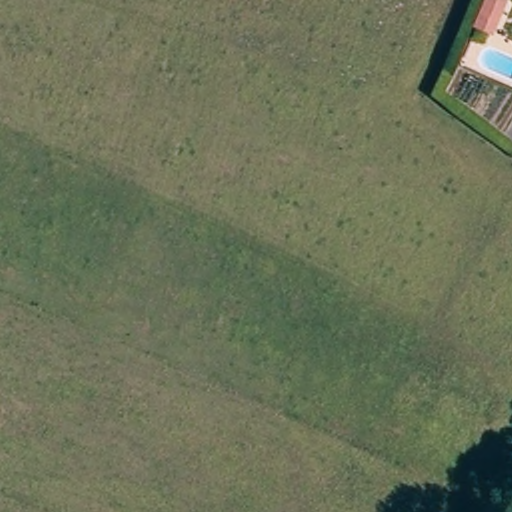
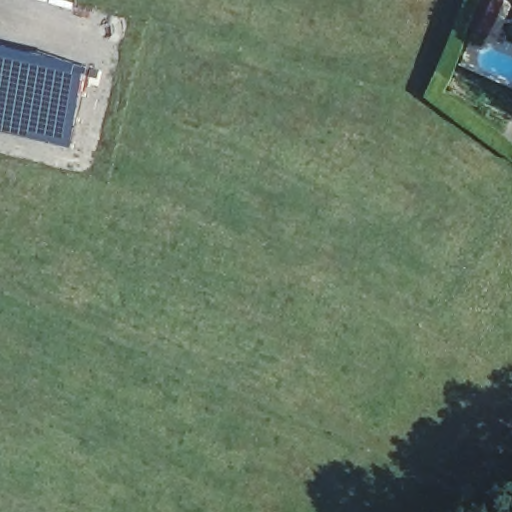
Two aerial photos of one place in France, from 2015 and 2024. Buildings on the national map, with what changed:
unchanged [(487,4),(501,9),(494,32),(480,28),(487,4)]
new [(49,52),(90,65),(70,147),(0,133),(0,42),(49,52)]

